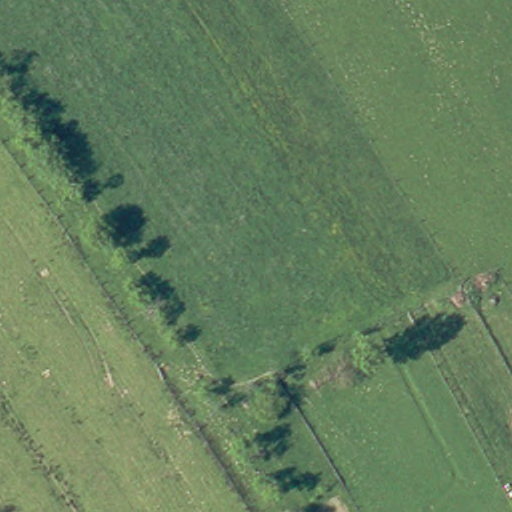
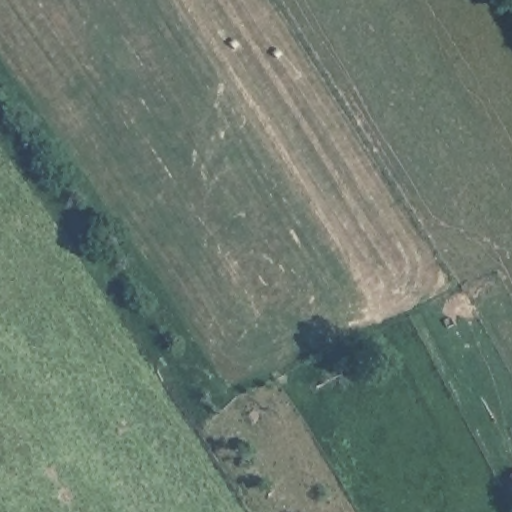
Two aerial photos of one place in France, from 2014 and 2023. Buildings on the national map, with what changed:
[]

